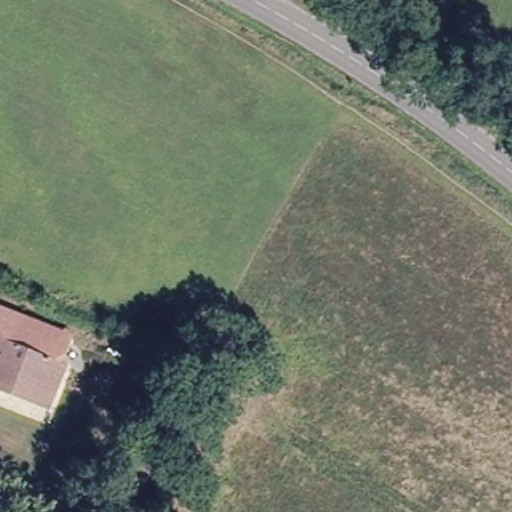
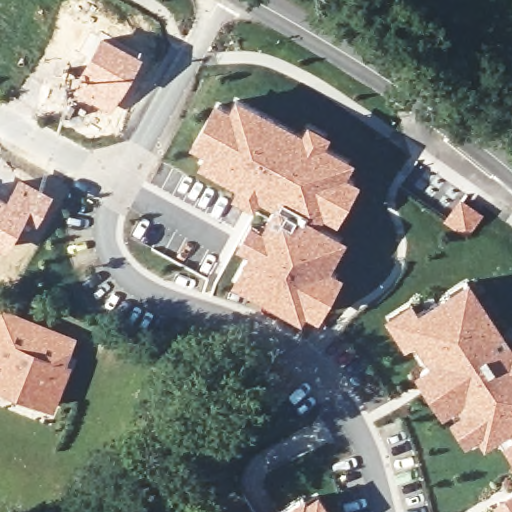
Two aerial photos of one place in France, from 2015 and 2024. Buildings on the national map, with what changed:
new [(100,33),(142,54),(109,114),(69,94),(100,33)]
new [(308,300),(303,309),(239,274),(255,244),(244,238),(255,219),(266,224),(278,203),(257,191),(254,196),(239,188),(244,178),(205,156),(211,145),(199,138),(222,97),(234,103),(238,95),(305,131),(311,121),(327,130),(321,140),(351,156),(344,169),(356,176),(337,211),(325,204),(317,217),(345,232),(329,262),(340,268),(319,307),(308,300)]
new [(5,196),(18,175),(53,193),(35,225),(24,220),(6,250),(0,248),(0,194),(5,196)]
new [(461,202),(480,215),(468,234),(449,220),(461,202)]
new [(479,428),(469,435),(456,416),(466,409),(459,397),(448,404),(425,368),(435,361),(418,335),(407,342),(391,316),(412,301),(419,312),(428,307),(424,301),(434,294),(438,300),(451,291),(468,280),(475,291),(512,348),(512,422),(486,439),(479,428)]
unchanged [(33,324),(67,338),(57,363),(66,366),(51,404),(0,384),(0,311),(33,324)]
new [(512,440),(512,444),(510,441),(512,440)]
new [(499,498),(512,490),(512,512),(500,512),(506,508),(499,498)]
new [(311,500),(322,493),(333,512),(282,512),(308,495),(311,500)]

